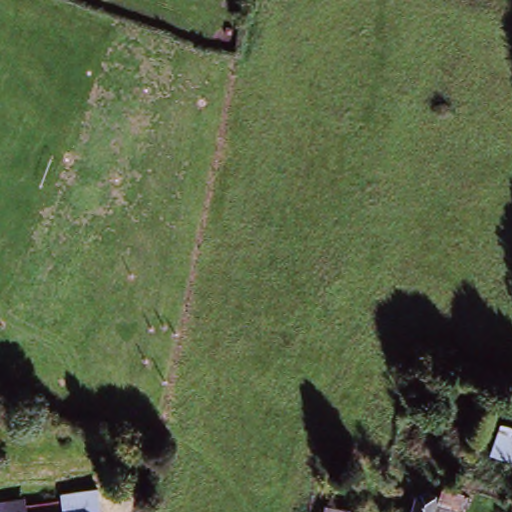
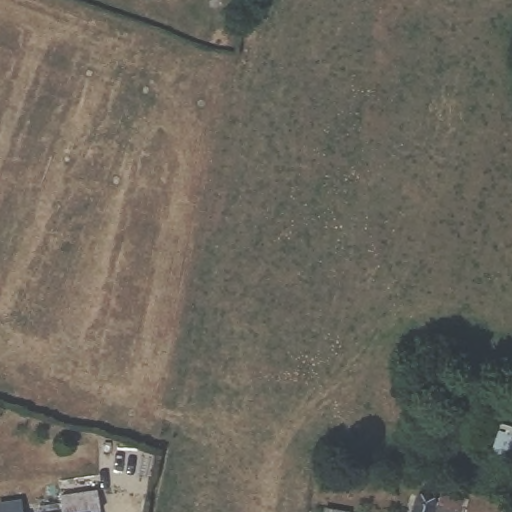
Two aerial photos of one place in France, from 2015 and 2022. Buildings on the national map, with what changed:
unchanged [(501,453),(482,446),(490,422),(512,429),(512,453),(502,450),(501,453)]
unchanged [(447,512),(402,512),(403,504),(411,506),(414,493),(430,497),(431,490),(452,495),(447,512)]
unchanged [(96,492),(100,508),(78,512),(26,512),(26,508),(60,502),(60,495),(96,492)]
unchanged [(20,504),(22,512),(0,512),(0,510),(0,507),(20,504)]
unchanged [(78,512),(100,508),(101,512),(78,512)]
unchanged [(324,512),(325,508),(343,511),(343,512),(324,512)]

